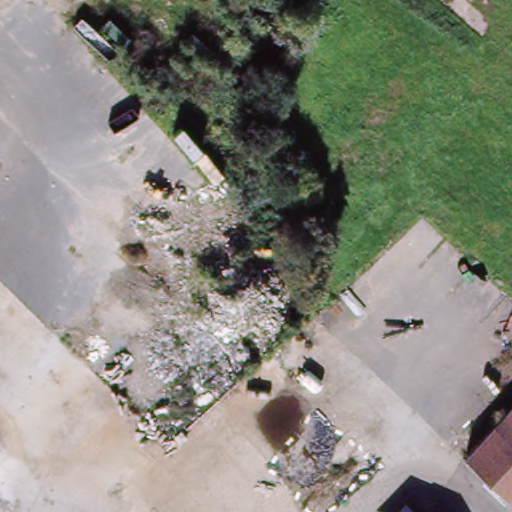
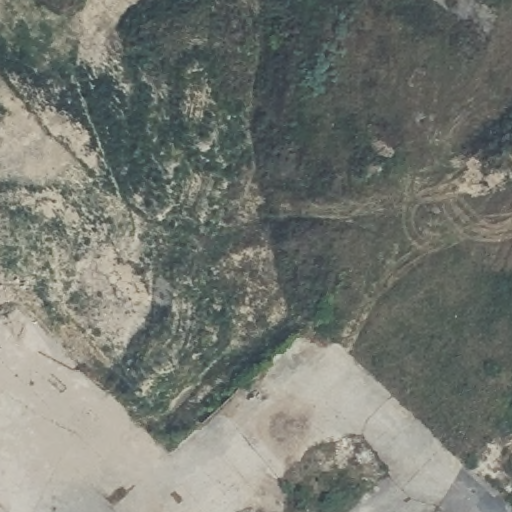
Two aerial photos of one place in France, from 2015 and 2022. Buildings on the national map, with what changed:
demolished [(0,377),(3,381),(0,385),(0,377)]
demolished [(512,405),(512,495),(506,502),(462,460),(512,405)]

